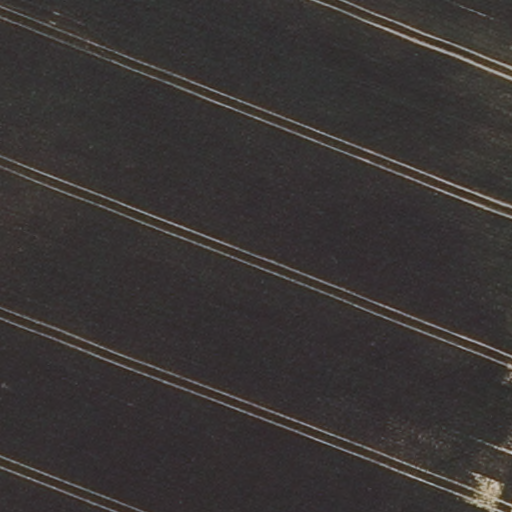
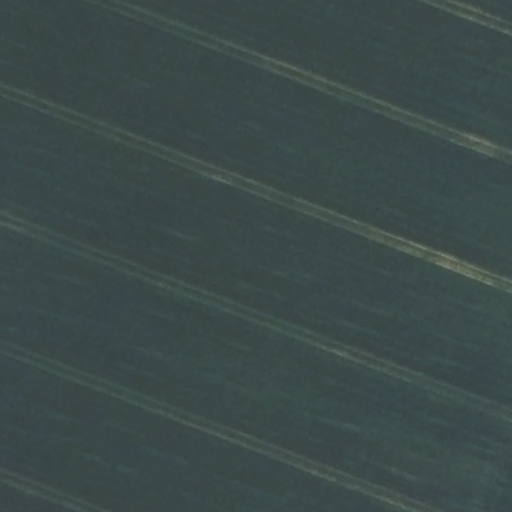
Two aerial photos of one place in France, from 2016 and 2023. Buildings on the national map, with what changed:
[]

